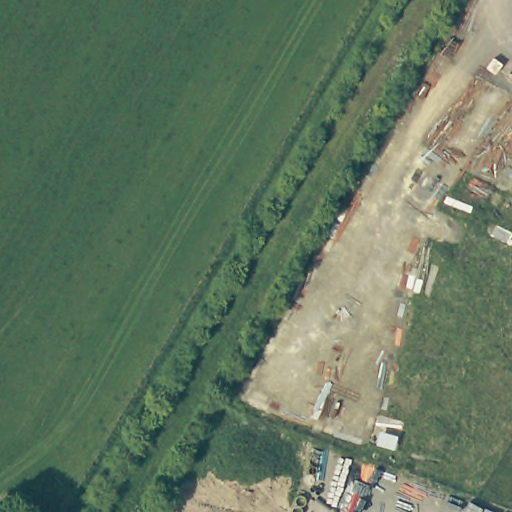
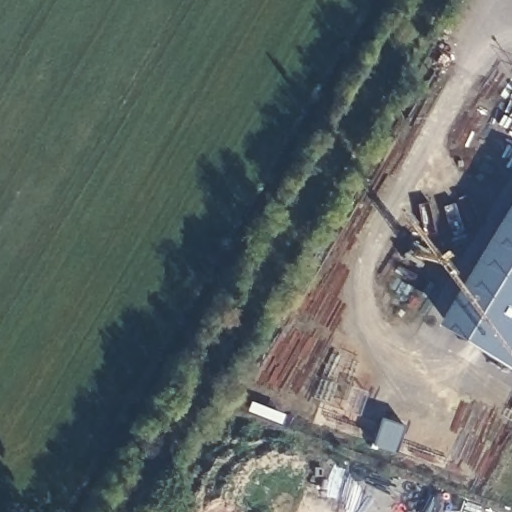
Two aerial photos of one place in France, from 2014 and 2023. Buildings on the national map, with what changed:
new [(430,324),(512,189),(512,371),(430,324)]

